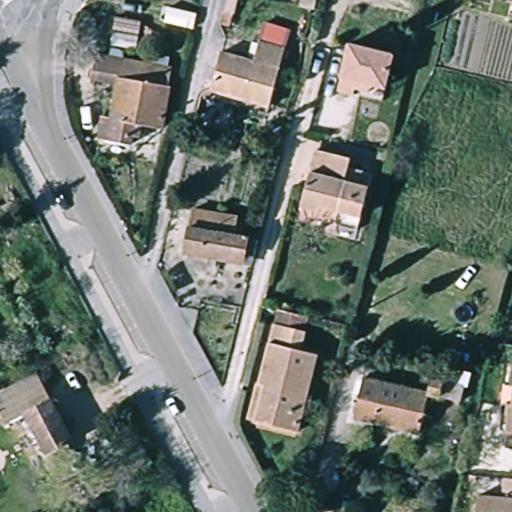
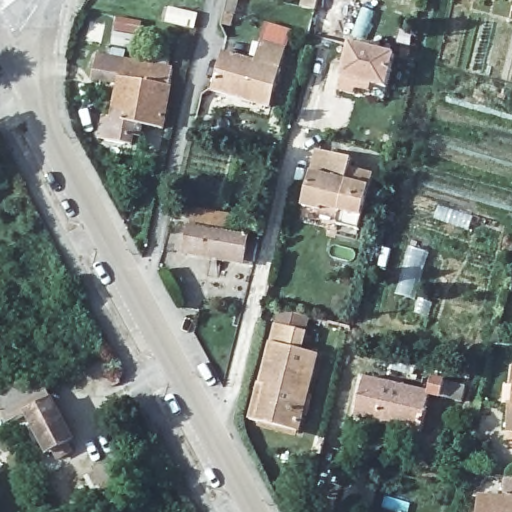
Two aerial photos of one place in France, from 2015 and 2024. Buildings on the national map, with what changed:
unchanged [(386,87),(370,83),(370,91),(356,88),(352,94),(338,92),(350,41),(396,52),(386,87)]
unchanged [(288,52),(273,110),(215,96),(225,59),(257,66),(263,46),(288,52)]
unchanged [(160,120),(140,116),(137,129),(130,127),(127,136),(97,130),(102,109),(109,110),(116,78),(89,72),(94,50),(121,55),(171,66),(160,120)]
unchanged [(240,126),(236,141),(223,138),(226,122),(240,126)]
unchanged [(355,161),(351,171),(375,179),(361,232),(338,226),(342,212),(325,208),(323,212),(303,206),(320,151),(355,161)]
unchanged [(241,223),(238,239),(250,242),(245,265),(187,254),(196,212),(241,223)]
unchanged [(257,390),(262,391),(277,331),(281,317),(311,327),(308,339),(303,357),(317,362),(300,439),(257,429),(248,427),(257,390)]
unchanged [(66,443),(70,449),(56,457),(52,451),(44,454),(26,417),(15,423),(0,395),(0,394),(42,374),(75,438),(66,443)]
unchanged [(445,399),(432,396),(436,378),(448,381),(468,386),(465,403),(445,399)]
unchanged [(360,421),(369,381),(432,396),(422,436),(360,421)]
unchanged [(504,403),(505,385),(512,385),(512,436),(502,435),(503,428),(504,403)]
unchanged [(482,496),(507,499),(510,480),(512,480),(512,512),(480,512),(482,496)]

